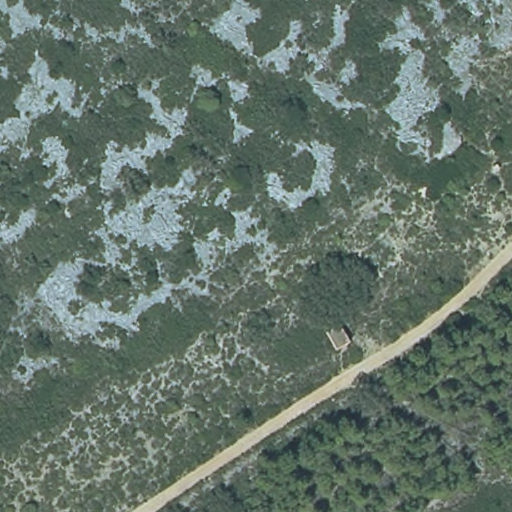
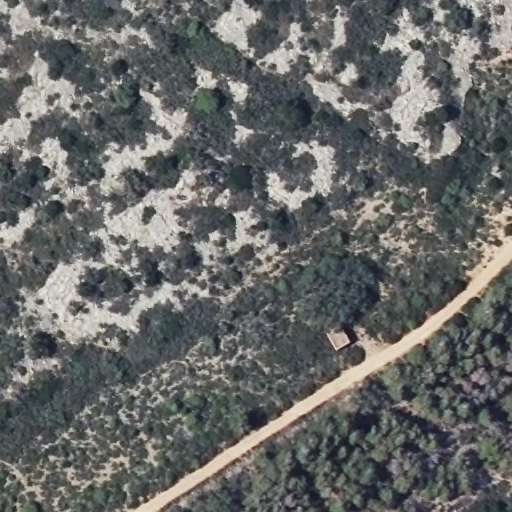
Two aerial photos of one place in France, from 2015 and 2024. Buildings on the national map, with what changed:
unchanged [(325,332),(341,322),(353,341),(337,349),(325,332)]

